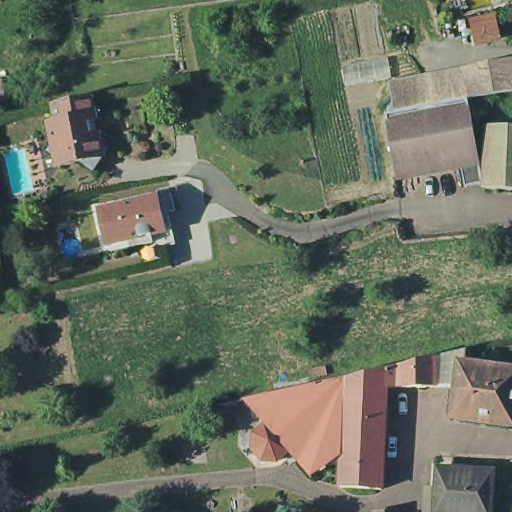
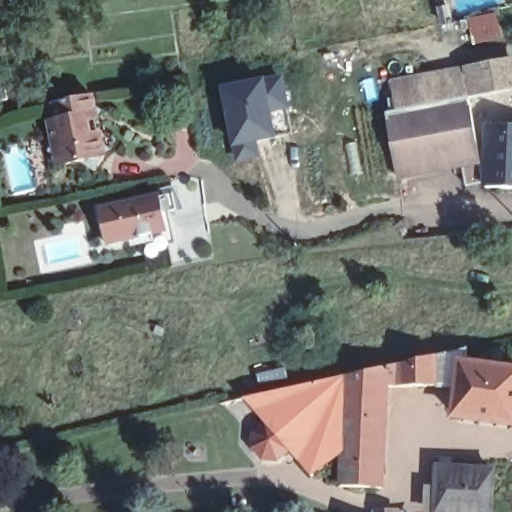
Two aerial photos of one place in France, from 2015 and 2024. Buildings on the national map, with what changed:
unchanged [(494,91),(477,94),(471,65),(512,59),(512,88),(494,91)]
unchanged [(397,79),(471,65),(477,94),(472,95),(402,107),(397,79)]
new [(283,74),(290,110),(272,114),(275,140),(257,144),(260,159),(234,164),(219,86),(283,74)]
unchanged [(95,165),(82,157),(60,162),(57,151),(50,145),(55,137),(51,116),(58,115),(55,99),(91,91),(93,101),(101,107),(106,128),(115,134),(110,142),(95,165)]
unchanged [(472,95),(484,157),(482,158),(486,179),(470,181),(466,161),(401,172),(391,110),(402,107),(472,95)]
unchanged [(490,184),(491,164),(492,125),(512,125),(512,185),(490,184)]
unchanged [(166,205),(159,206),(166,238),(136,245),(133,232),(98,240),(90,204),(150,190),(162,187),(166,205)]
unchanged [(466,354),(463,380),(390,378),(391,362),(470,344),(468,354),(466,354)]
unchanged [(466,354),(468,354),(512,360),(512,415),(460,410),(463,380),(466,354)]
unchanged [(278,451),(262,450),(253,440),(253,425),(264,415),(256,403),(242,396),(241,393),(250,391),(302,380),(351,370),(391,362),(390,378),(385,481),(346,478),(347,446),(316,468),(292,442),(278,451)]
unchanged [(436,465),(492,466),(492,512),(464,512),(435,511),(436,465)]

